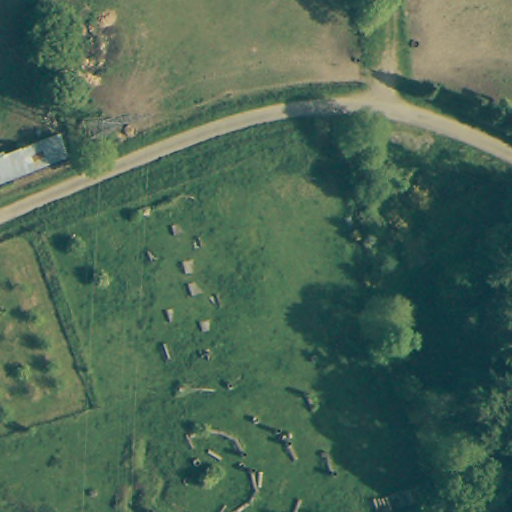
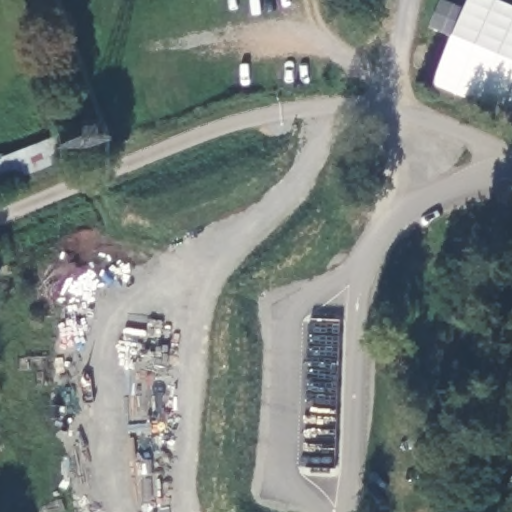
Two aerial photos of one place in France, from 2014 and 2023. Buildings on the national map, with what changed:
new [(501,0),(512,5),(512,120),(431,86),(467,0),(501,0)]
unchanged [(46,142),(54,163),(0,185),(0,162),(46,142)]

